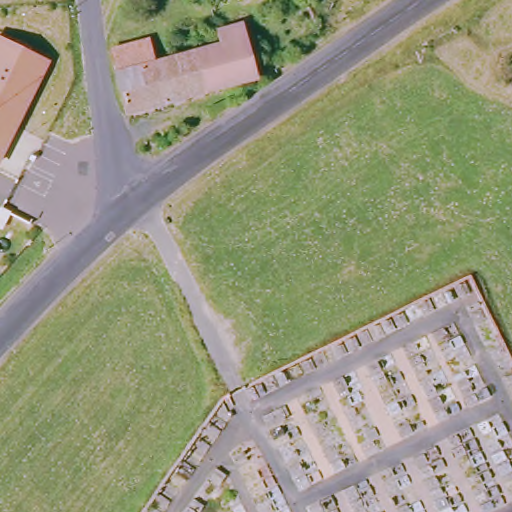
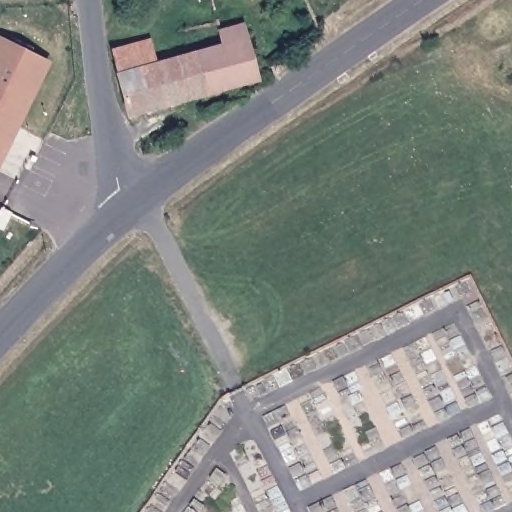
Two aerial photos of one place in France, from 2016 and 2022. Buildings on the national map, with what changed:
unchanged [(128,120),(109,56),(147,42),(155,65),(224,43),(222,32),(239,27),(253,78),(128,120)]
unchanged [(0,164),(0,40),(43,61),(48,64),(40,80),(17,128),(5,153),(0,164)]

